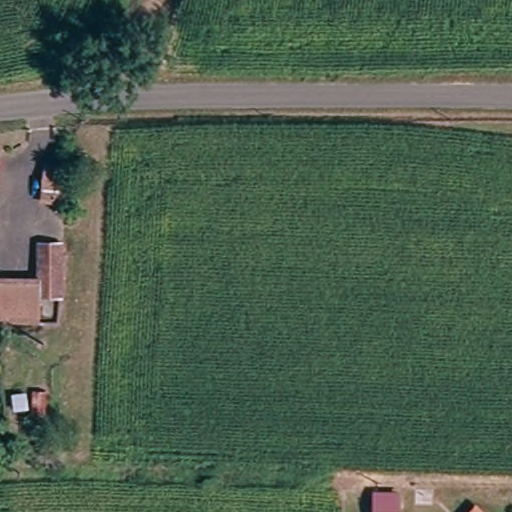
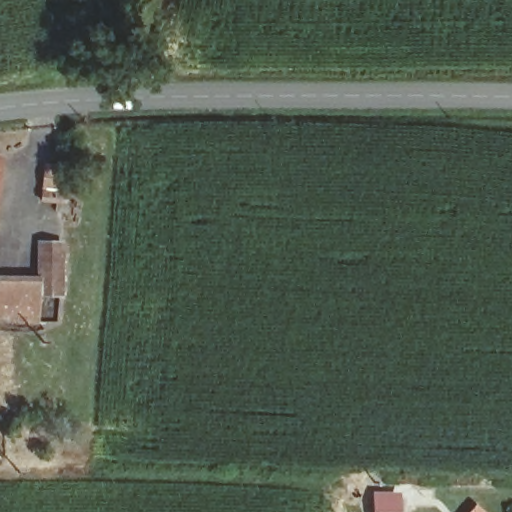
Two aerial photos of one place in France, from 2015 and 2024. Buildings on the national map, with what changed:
unchanged [(60,204),(37,201),(41,167),(64,169),(60,204)]
unchanged [(35,280),(38,241),(59,241),(57,297),(39,296),(38,304),(0,302),(0,278),(35,280)]
unchanged [(369,495),(369,492),(369,488),(395,488),(395,495),(394,512),(368,512),(368,497),(369,495)]
unchanged [(476,512),(482,507),(487,512),(476,512)]

